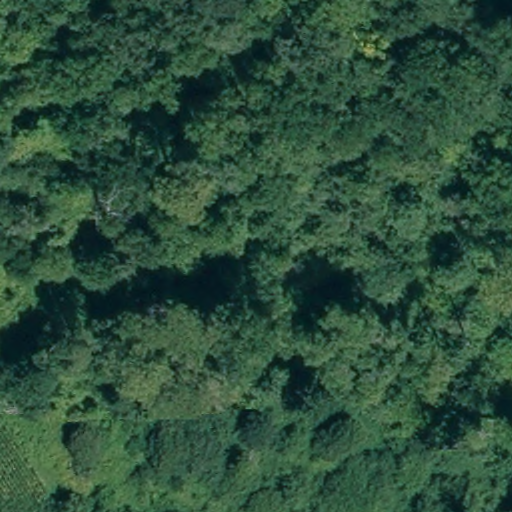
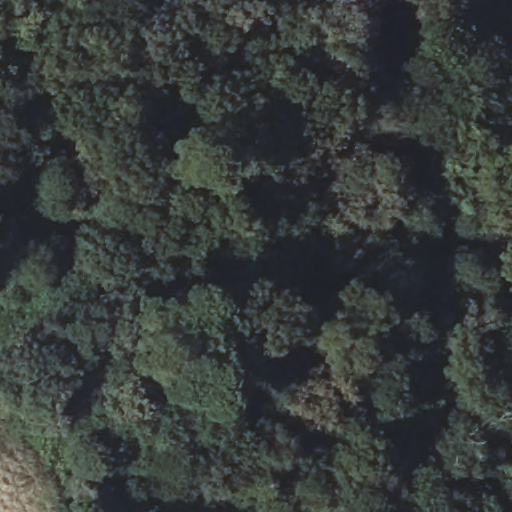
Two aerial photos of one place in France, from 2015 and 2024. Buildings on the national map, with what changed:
[]

